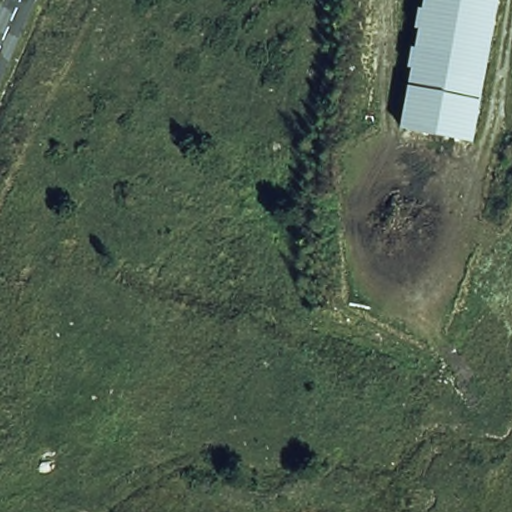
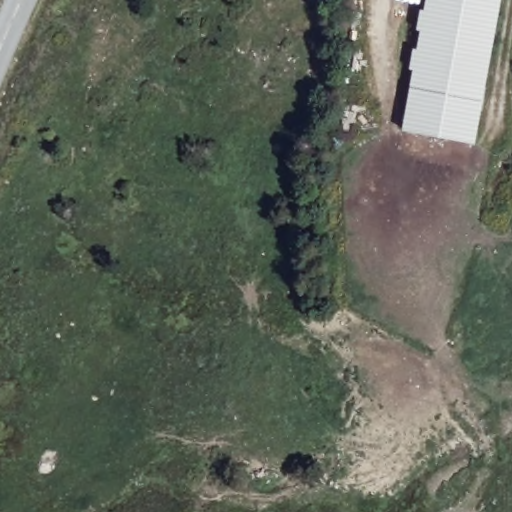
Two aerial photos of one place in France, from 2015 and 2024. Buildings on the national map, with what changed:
unchanged [(475,146),(401,131),(415,37),(422,0),(504,0),(501,10),(475,146)]

